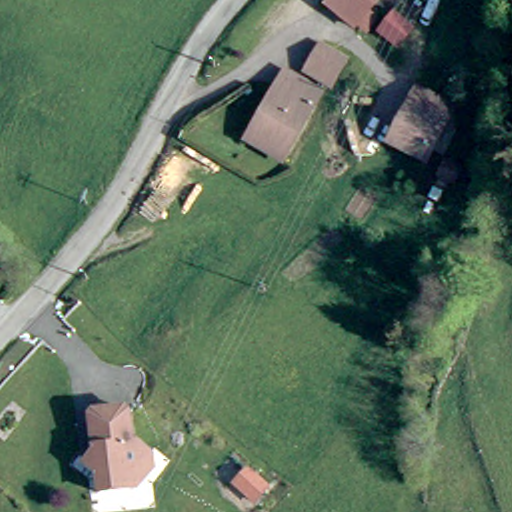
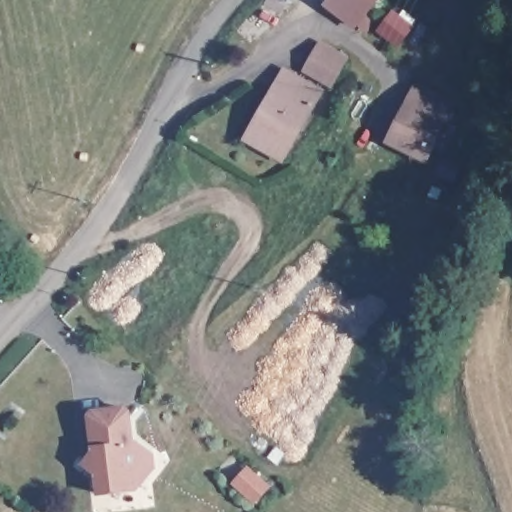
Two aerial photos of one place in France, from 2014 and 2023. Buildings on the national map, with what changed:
unchanged [(353,27),(332,12),(325,6),(330,0),(374,0),(353,27)]
unchanged [(299,67),(307,53),(315,39),(342,54),(333,68),(325,82),(299,67)]
unchanged [(315,87),(277,156),(241,136),(279,68),(315,87)]
unchanged [(388,139),(418,86),(442,100),(451,104),(422,157),(408,150),(388,139)]
unchanged [(472,172),(465,187),(453,181),(450,179),(458,164),(463,167),(472,172)]
unchanged [(132,492),(94,497),(91,478),(82,471),(88,461),(83,420),(87,415),(117,412),(122,415),(125,438),(125,447),(130,445),(144,457),(145,464),(147,473),(132,492)]

